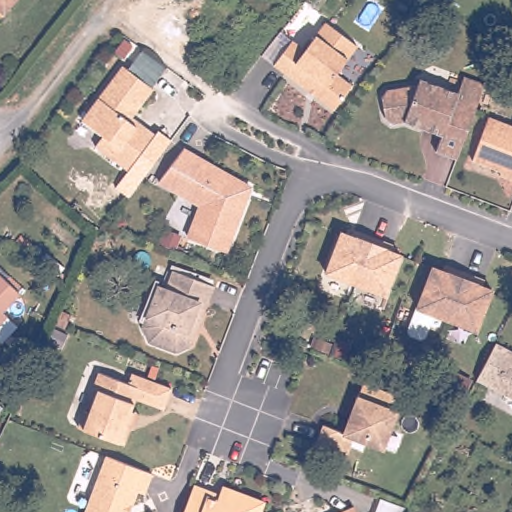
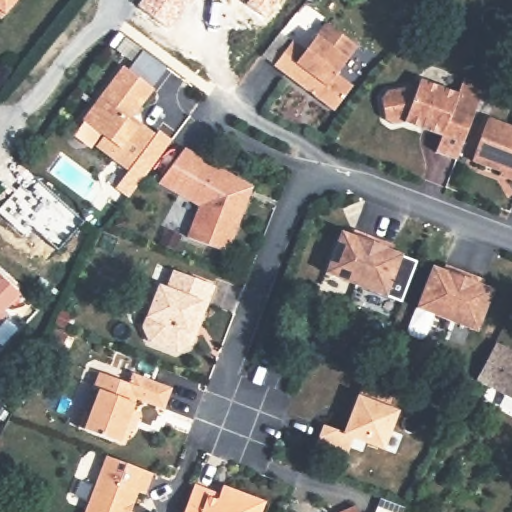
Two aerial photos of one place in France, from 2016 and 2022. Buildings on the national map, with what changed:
unchanged [(0,15),(0,0),(14,0),(1,15),(0,15)]
unchanged [(352,83),(333,108),(275,62),(292,39),(306,49),(326,21),(357,44),(336,71),(352,83)]
unchanged [(156,134),(130,171),(96,146),(103,135),(82,120),(122,65),(153,87),(132,116),(156,134)]
unchanged [(437,151),(443,136),(405,121),(392,123),(385,118),(382,96),(387,90),(418,85),(421,80),(459,93),(465,76),(486,84),(480,100),(457,159),(437,151)]
unchanged [(473,160),(489,118),(512,126),(512,175),(473,160)]
unchanged [(189,237),(196,220),(200,221),(206,207),(159,182),(182,150),(242,181),(251,186),(247,195),(226,251),(189,237)]
unchanged [(327,272),(343,232),(358,238),(361,232),(375,237),(357,284),(327,272)]
unchanged [(375,237),(389,244),(387,249),(403,255),(387,295),(357,284),(375,237)]
unchanged [(421,333),(411,329),(409,325),(417,302),(433,261),(449,267),(452,262),(466,268),(448,314),(435,309),(426,331),(421,333)]
unchanged [(466,268),(480,273),(477,279),(493,285),(477,325),(448,314),(466,268)]
unchanged [(215,285),(192,345),(177,351),(151,341),(144,326),(160,286),(167,289),(175,270),(215,285)]
unchanged [(1,312),(5,315),(0,321),(0,274),(20,292),(1,312)]
unchanged [(512,342),(512,390),(505,386),(480,372),(489,355),(500,336),(512,342)]
unchanged [(174,387),(167,408),(139,397),(135,410),(136,417),(125,443),(80,425),(87,408),(92,411),(101,389),(96,386),(102,370),(132,382),(136,372),(174,387)]
unchanged [(397,413),(383,451),(354,440),(347,460),(317,450),(325,429),(345,436),(363,388),(392,399),(388,410),(397,413)]
unchanged [(139,490),(130,512),(85,512),(107,455),(153,472),(145,493),(139,490)]
unchanged [(209,496),(217,500),(223,486),(265,502),(261,512),(184,512),(194,485),(211,491),(209,496)]
unchanged [(407,508),(406,512),(379,512),(384,499),(407,508)]
unchanged [(355,506),(357,512),(341,512),(355,506)]

